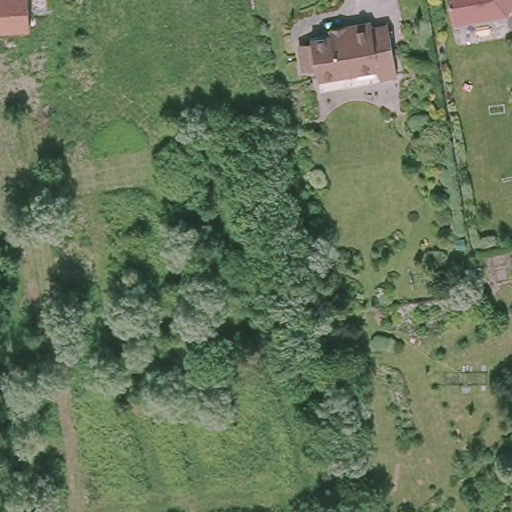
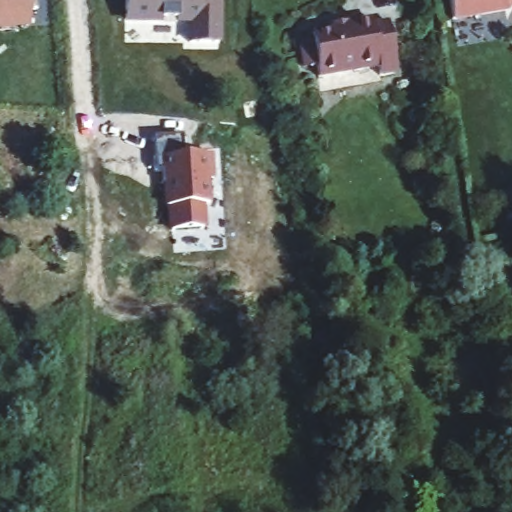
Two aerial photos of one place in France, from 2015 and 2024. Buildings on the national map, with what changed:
unchanged [(0,29),(0,0),(27,0),(29,27),(0,29)]
new [(188,44),(189,25),(124,23),(125,0),(222,0),(221,44),(188,44)]
unchanged [(457,18),(454,0),(512,0),(512,6),(510,9),(457,18)]
unchanged [(317,42),(316,38),(337,34),(336,29),(353,25),(376,21),(378,26),(394,23),(403,74),(387,76),(385,68),(324,79),(321,66),(309,69),(304,45),(317,42)]
new [(183,154),(211,154),(213,181),(209,181),(212,204),(206,204),(208,227),(169,230),(168,207),(163,207),(162,170),(155,171),(153,136),(183,136),(183,154)]

